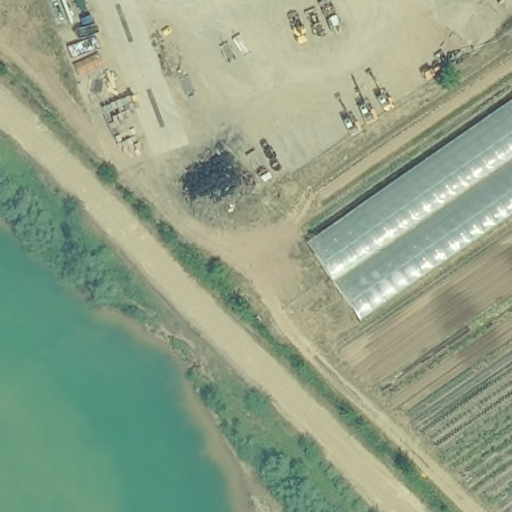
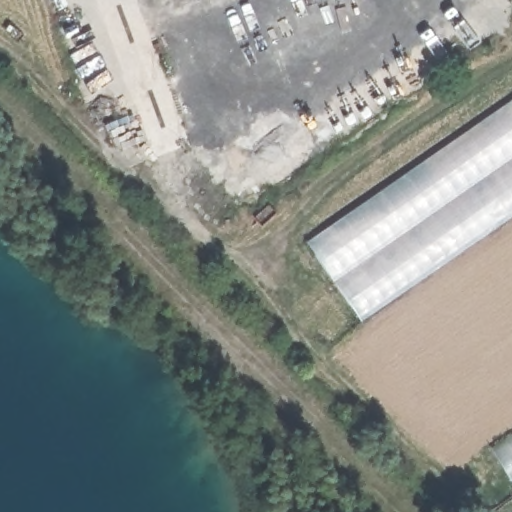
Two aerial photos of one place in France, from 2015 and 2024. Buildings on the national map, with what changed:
unchanged [(512,217),(362,321),(307,242),(512,100),(512,217)]
new [(512,437),(512,485),(490,451),(512,437)]

